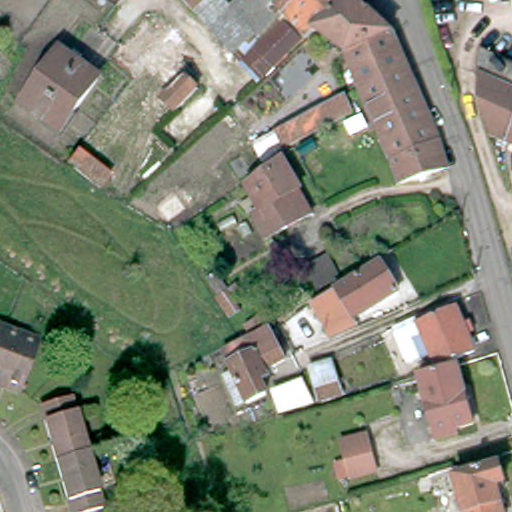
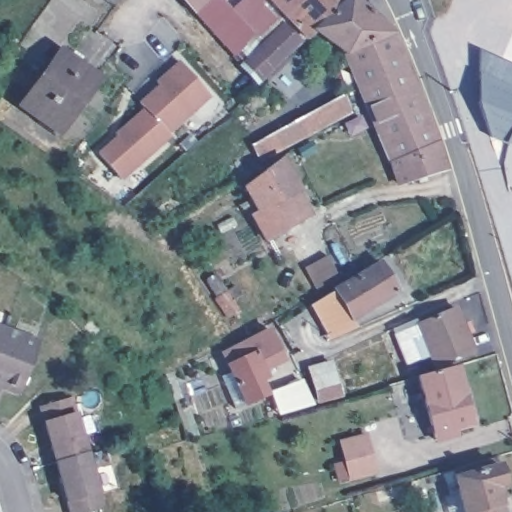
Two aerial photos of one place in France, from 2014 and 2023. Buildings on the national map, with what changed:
unchanged [(184,0),(202,0),(192,9),(184,0)]
unchanged [(285,14),(282,10),(256,35),(255,34),(235,52),(192,9),(202,0),(222,0),(230,8),(238,0),(300,0),(291,9),(285,14)]
unchanged [(315,31),(309,37),(305,34),(285,52),(258,77),(245,63),(265,43),(289,17),(285,14),(291,9),(300,0),(347,0),(320,27),(315,31)]
unchanged [(345,52),(315,31),(320,27),(347,0),(357,0),(391,32),(345,52)]
demolished [(156,99),(165,91),(133,62),(168,26),(182,38),(176,44),(194,61),(180,76),(192,89),(184,97),(170,111),(156,99)]
unchanged [(417,94),(426,115),(432,128),(438,141),(441,150),(445,160),(446,167),(400,181),(377,127),(357,80),(349,60),(345,52),(391,32),(417,94)]
unchanged [(512,66),(512,145),(486,135),(475,77),(475,50),(512,66)]
unchanged [(95,76),(75,105),(57,129),(26,105),(63,52),(95,76)]
new [(144,108),(138,101),(157,85),(155,82),(179,62),(211,97),(168,134),(171,136),(121,179),(98,152),(116,136),(114,133),(144,108)]
unchanged [(315,130),(262,159),(255,145),(286,127),(345,95),(352,110),(315,130)]
demolished [(110,176),(101,186),(71,163),(78,153),(110,176)]
unchanged [(265,172),(277,163),(308,217),(270,239),(240,190),(265,172)]
unchanged [(338,276),(315,287),(305,266),(327,255),(338,276)]
unchanged [(395,291),(331,332),(325,322),(328,320),(317,302),(380,265),(395,291)]
unchanged [(427,365),(421,352),(406,358),(395,328),(447,308),(453,322),(461,319),(465,332),(458,335),(465,350),(427,365)]
unchanged [(25,382),(6,375),(1,385),(0,385),(0,320),(42,336),(25,382)]
unchanged [(283,355),(263,366),(265,370),(259,375),(265,389),(239,402),(226,377),(235,372),(223,348),(267,325),(283,355)]
unchanged [(306,373),(302,360),(328,352),(341,397),(281,418),(270,385),(306,373)]
unchanged [(461,422),(448,426),(449,433),(428,439),(410,375),(446,365),(461,422)]
unchanged [(105,507),(83,512),(74,512),(46,404),(75,395),(105,507)]
unchanged [(378,473),(339,485),(335,465),(345,463),(339,442),(368,433),(378,473)]
unchanged [(508,479),(501,481),(510,512),(472,512),(466,491),(464,482),(463,480),(441,486),(437,472),(460,466),(459,463),(501,451),(508,479)]

